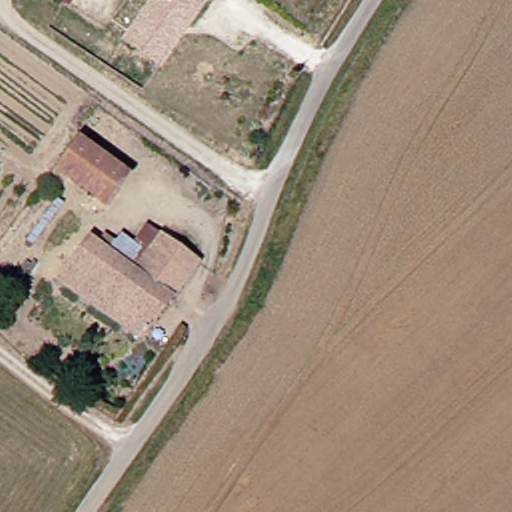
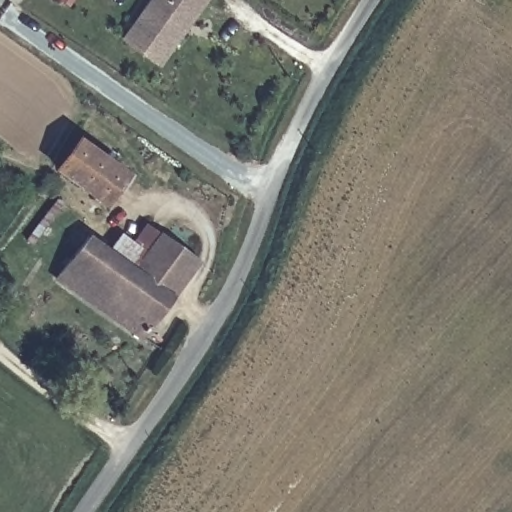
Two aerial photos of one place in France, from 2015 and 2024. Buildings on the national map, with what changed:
unchanged [(61,0),(72,0),(69,5),(61,0)]
unchanged [(125,42),(154,0),(205,0),(167,53),(160,66),(140,52),(125,42)]
unchanged [(120,174),(99,204),(52,171),(75,141),(120,174)]
unchanged [(90,250),(95,243),(106,250),(115,240),(124,246),(139,231),(151,240),(152,241),(150,244),(125,274),(114,266),(90,250)]
unchanged [(114,266),(125,274),(150,244),(152,241),(185,265),(131,340),(49,281),(77,240),(90,250),(114,266)]

